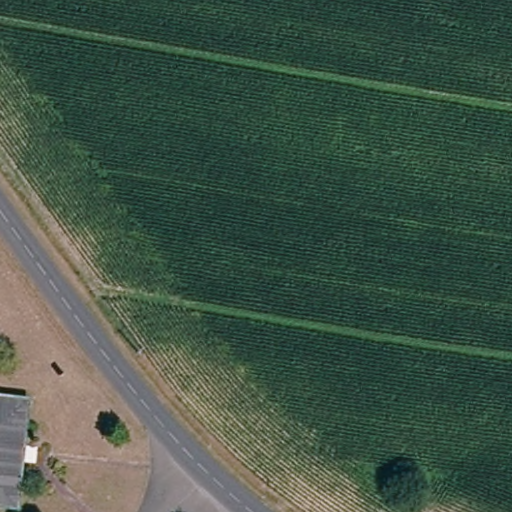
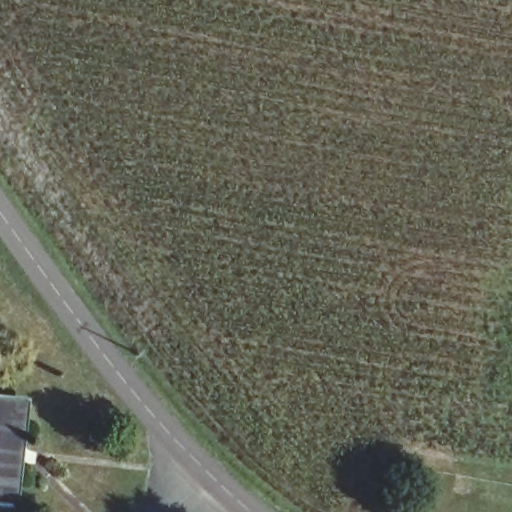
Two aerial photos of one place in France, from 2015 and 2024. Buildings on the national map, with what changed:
unchanged [(14,510),(0,508),(0,406),(27,411),(14,510)]

